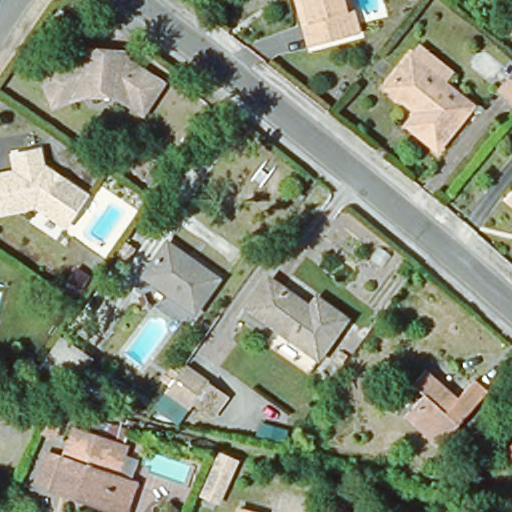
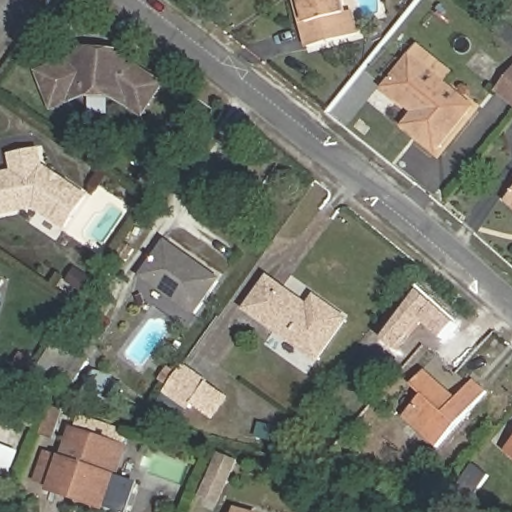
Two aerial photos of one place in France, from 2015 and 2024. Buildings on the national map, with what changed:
unchanged [(352,11),(358,34),(310,47),(297,0),(341,0),(345,13),(352,11)]
unchanged [(76,53),(82,46),(120,50),(161,78),(139,112),(136,110),(107,91),(77,91),(46,102),(34,68),(37,66),(76,53)]
unchanged [(392,83),(416,53),(477,101),(442,145),(412,121),(422,108),(416,103),(392,83)]
unchanged [(512,80),(512,112),(497,99),(512,80)]
unchanged [(65,231),(36,211),(0,217),(0,178),(17,175),(14,159),(42,154),(44,170),(53,176),(66,185),(87,200),(65,231)]
unchanged [(512,192),(512,204),(506,199),(512,192)]
unchanged [(213,287),(190,319),(138,282),(162,249),(213,287)]
unchanged [(305,313),(311,303),(342,325),(314,365),(244,317),(265,286),(305,313)]
new [(421,292),(460,324),(445,340),(425,323),(398,353),(384,341),(421,292)]
unchanged [(58,341),(89,364),(73,386),(42,364),(58,341)]
unchanged [(184,367),(227,398),(213,417),(196,406),(192,411),(165,393),(184,367)]
unchanged [(459,398),(476,380),(488,391),(437,447),(405,417),(424,396),(414,386),(428,371),(459,398)]
unchanged [(112,509),(100,505),(48,487),(49,483),(35,479),(43,452),(60,457),(70,428),(120,445),(110,474),(122,477),(112,509)]
unchanged [(512,449),(512,452),(511,451),(512,449)]
unchanged [(203,501),(215,474),(221,460),(236,467),(230,480),(218,508),(203,501)]
unchanged [(478,484),(471,496),(460,490),(466,478),(478,484)]

